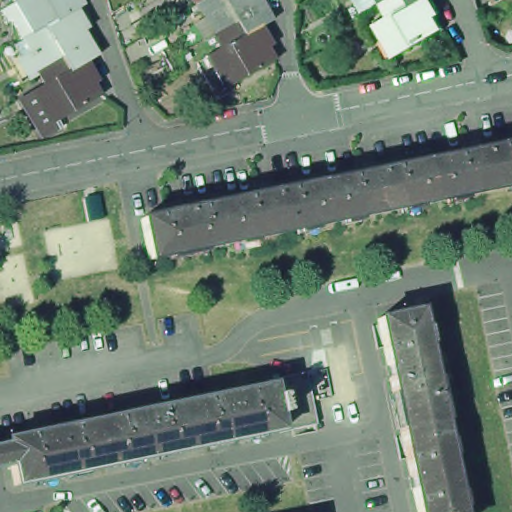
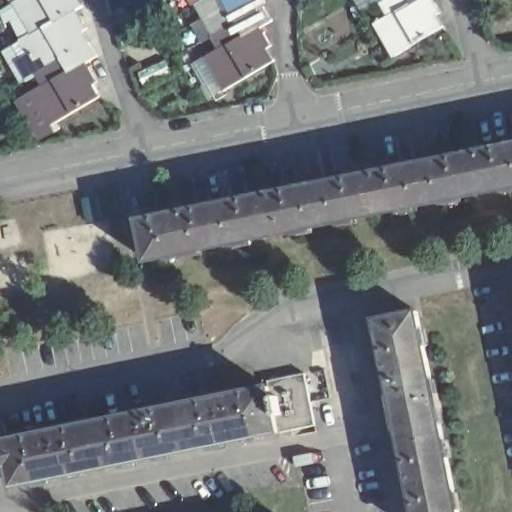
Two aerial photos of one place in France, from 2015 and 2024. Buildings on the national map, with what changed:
unchanged [(12,5),(20,0),(22,0),(13,6),(12,5)]
unchanged [(22,43),(21,42),(31,37),(13,6),(22,0),(76,0),(80,9),(22,43)]
unchanged [(200,7),(195,11),(189,0),(216,0),(201,9),(200,7)]
unchanged [(259,0),(264,9),(267,7),(277,22),(250,39),(242,26),(219,39),(201,9),(216,0),(259,0)]
unchanged [(393,16),(385,2),(388,0),(440,0),(446,11),(442,14),(449,26),(398,55),(380,25),(393,16)]
unchanged [(386,0),(388,0),(385,2),(385,1),(386,0)]
unchanged [(82,11),(77,14),(87,34),(84,36),(97,59),(70,74),(64,62),(37,77),(37,76),(38,74),(22,43),(80,9),(82,11)]
unchanged [(219,39),(242,26),(250,39),(277,22),(277,23),(265,30),(276,49),(271,52),(279,65),(230,94),(210,62),(223,54),(215,41),(219,39)]
unchanged [(42,140),(20,102),(32,96),(43,89),(37,77),(64,62),(70,74),(97,59),(97,60),(87,66),(96,84),(92,86),(100,99),(50,129),(52,134),(42,140)]
unchanged [(435,207),(427,167),(478,156),(512,149),(512,192),(435,207)]
unchanged [(435,207),(332,229),(324,187),(380,176),(427,167),(435,207)]
unchanged [(332,229),(230,250),(221,209),(277,197),(324,187),(332,229)]
unchanged [(147,224),(195,214),(221,209),(230,250),(155,265),(147,224)]
unchanged [(383,371),(375,332),(415,323),(436,430),(397,438),(383,371)]
unchanged [(11,472),(0,473),(0,437),(314,379),(322,436),(279,446),(15,496),(11,472)]
unchanged [(403,472),(397,438),(436,430),(452,512),(411,512),(403,472)]

